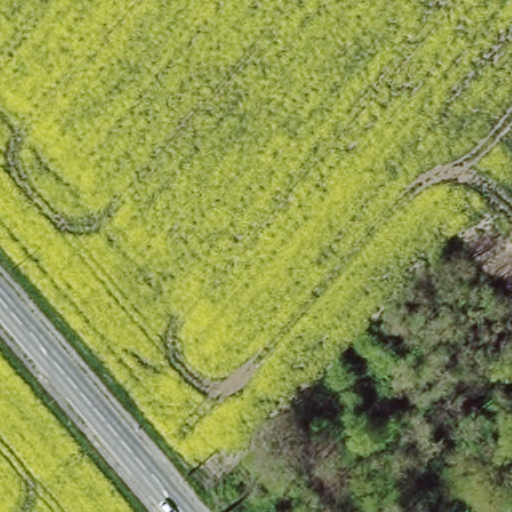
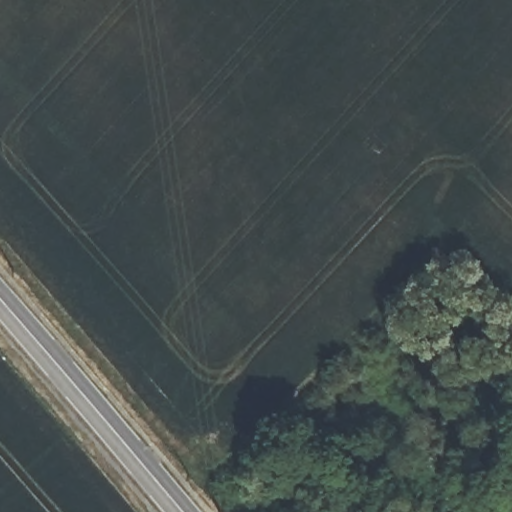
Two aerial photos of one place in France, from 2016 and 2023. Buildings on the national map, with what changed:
unchanged [(255,480),(237,497),(227,485),(243,469),(255,480)]

